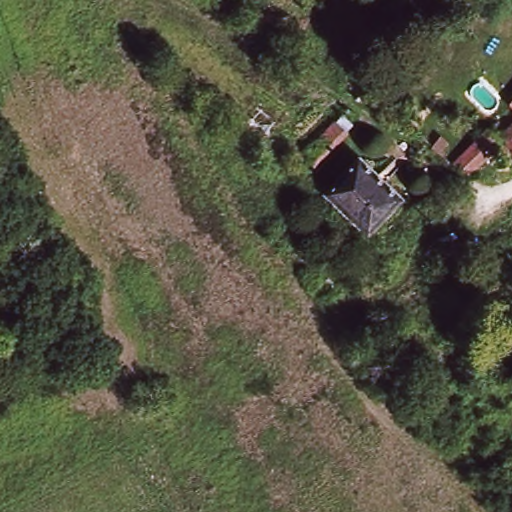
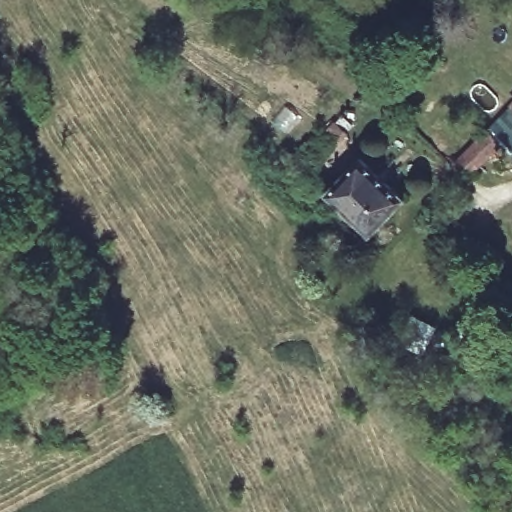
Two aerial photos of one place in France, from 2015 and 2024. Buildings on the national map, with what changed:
unchanged [(512,143),(498,129),(512,113),(512,143)]
unchanged [(341,122),(355,135),(313,180),(298,167),(341,122)]
unchanged [(512,143),(476,182),(461,167),(498,129),(512,143)]
unchanged [(334,203),(369,165),(383,178),(396,165),(407,174),(393,189),(409,203),(375,240),(334,203)]

